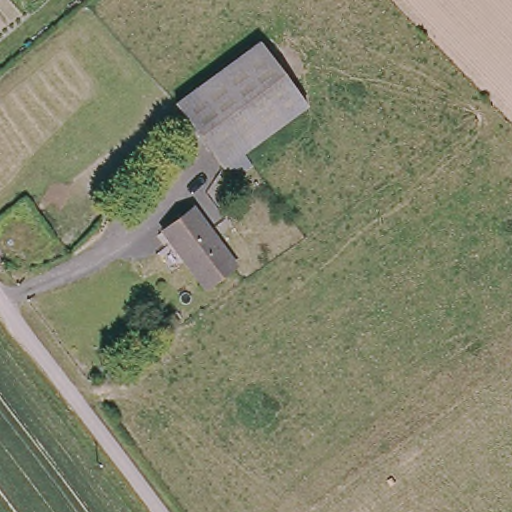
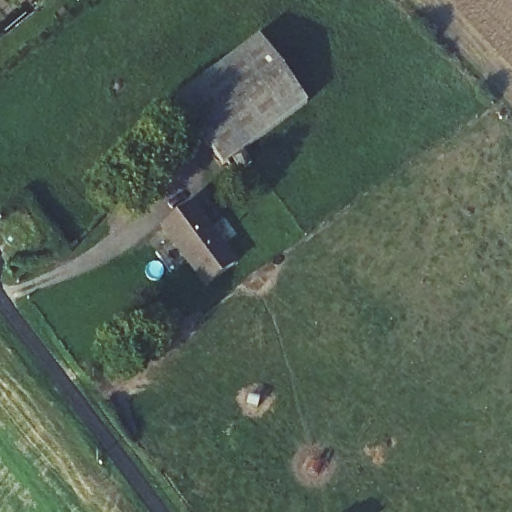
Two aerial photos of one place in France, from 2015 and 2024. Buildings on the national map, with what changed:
unchanged [(307,104),(227,169),(177,107),(257,41),(307,104)]
unchanged [(192,212),(235,266),(207,290),(162,234),(192,212)]

